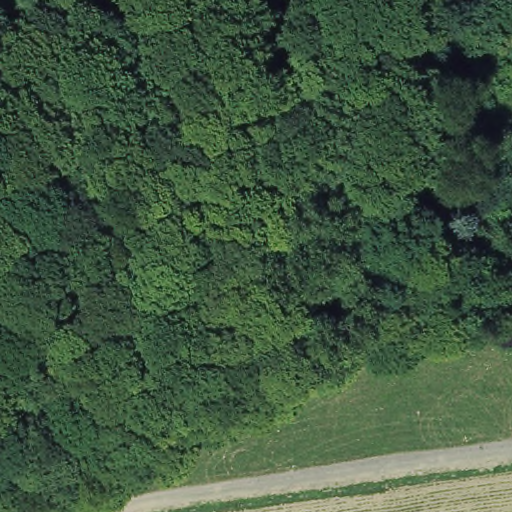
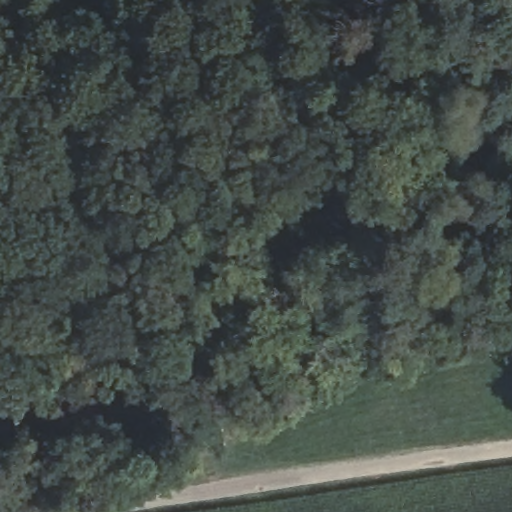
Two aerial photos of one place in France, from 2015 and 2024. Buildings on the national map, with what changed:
unchanged [(512,224),(512,265),(508,265),(506,224),(512,224)]

